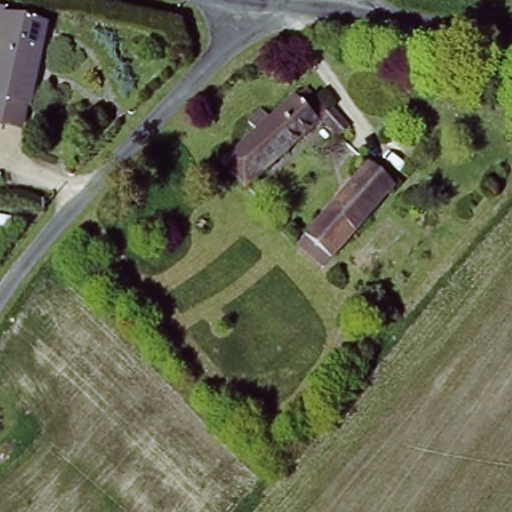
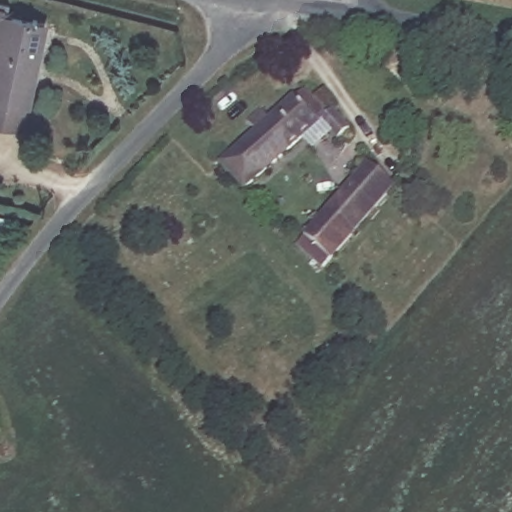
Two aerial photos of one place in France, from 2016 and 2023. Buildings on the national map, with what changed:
unchanged [(3,13),(45,22),(30,105),(0,100),(0,5),(3,5),(3,13)]
unchanged [(220,161),(253,133),(245,124),(258,112),(267,121),(303,90),(323,112),(328,109),(347,130),(334,141),(317,123),(242,187),(220,161)]
unchanged [(350,233),(332,255),(305,232),(363,161),(391,184),(350,233)]

